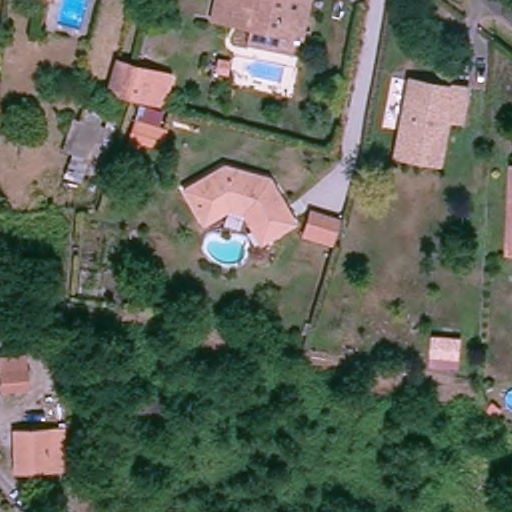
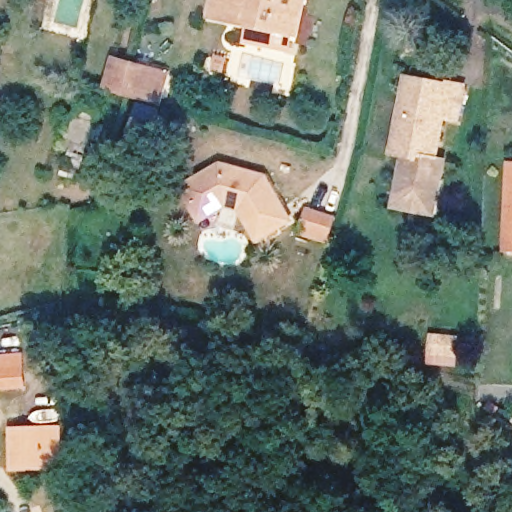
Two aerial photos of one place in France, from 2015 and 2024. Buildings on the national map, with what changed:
unchanged [(239,40),(242,25),(201,16),(204,0),(296,0),(290,36),(285,34),(282,50),(239,40)]
unchanged [(162,106),(119,94),(105,90),(114,57),(129,61),(172,73),(162,106)]
unchanged [(462,89),(454,122),(440,119),(430,163),(387,154),(404,81),(445,90),(446,85),(462,89)]
unchanged [(70,104),(91,110),(88,124),(102,126),(99,139),(86,137),(79,157),(58,149),(70,104)]
unchanged [(160,153),(123,144),(130,116),(166,128),(160,153)]
new [(438,217),(393,209),(402,157),(430,163),(432,158),(448,160),(438,217)]
unchanged [(241,223),(232,208),(219,204),(193,219),(175,186),(214,163),(259,176),(261,181),(270,197),(283,220),(258,234),(250,239),(241,223)]
unchanged [(507,164),(512,164),(512,250),(503,249),(507,164)]
unchanged [(332,245),(296,237),(303,208),(340,217),(332,245)]
unchanged [(458,335),(457,352),(431,351),(432,333),(458,335)]
unchanged [(0,392),(0,354),(25,352),(31,391),(0,392)]
unchanged [(60,425),(60,471),(42,471),(5,472),(4,428),(41,426),(60,425)]

